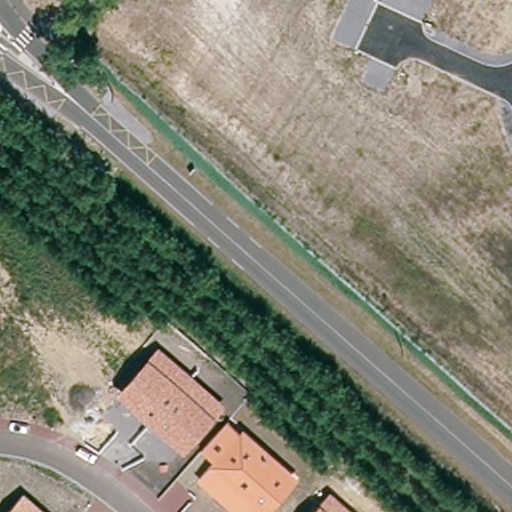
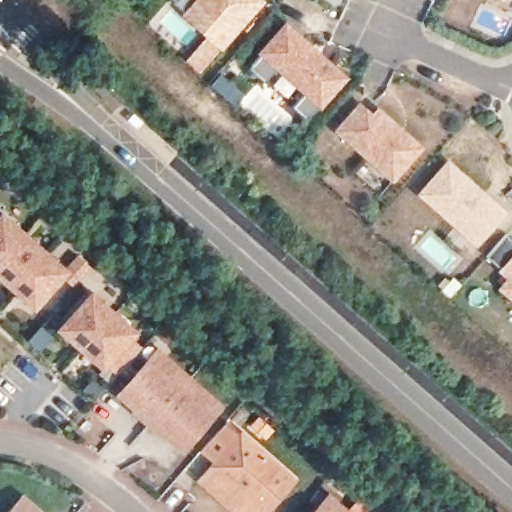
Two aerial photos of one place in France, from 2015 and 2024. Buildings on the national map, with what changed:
new [(267,3),(223,52),(181,16),(197,0),(264,0),(267,3)]
new [(290,20),(348,72),(311,114),(297,101),(310,85),(283,61),(269,77),(253,62),(290,20)]
new [(374,114),(380,108),(425,149),(394,183),(335,131),(360,104),(374,114)]
new [(509,213),(477,249),(417,196),(450,159),(509,213)]
new [(11,226),(11,230),(21,239),(25,238),(30,240),(31,243),(31,248),(42,258),(45,257),(50,259),(52,261),(52,266),(57,271),(32,300),(21,290),(17,295),(0,280),(0,274),(1,273),(0,272),(0,214),(9,222),(11,226)]
new [(497,290),(508,279),(499,271),(501,268),(488,257),(506,237),(512,241),(512,302),(497,290)]
new [(84,295),(90,300),(94,299),(99,301),(101,305),(100,309),(110,317),(113,316),(115,316),(120,319),(120,322),(120,326),(127,332),(121,338),(132,348),(113,371),(90,351),(85,356),(66,338),(70,333),(59,323),(84,295)]
unchanged [(185,453),(116,395),(148,359),(159,349),(225,406),(216,417),(185,453)]
unchanged [(202,450),(227,421),(238,431),(240,429),(298,477),(267,512),(237,512),(200,478),(215,460),(202,450)]
unchanged [(330,492),(353,512),(312,512),(320,503),(330,492)]
unchanged [(7,512),(24,494),(45,512),(7,512)]

